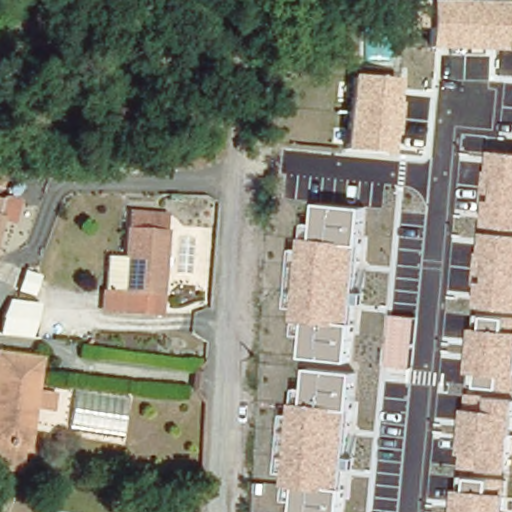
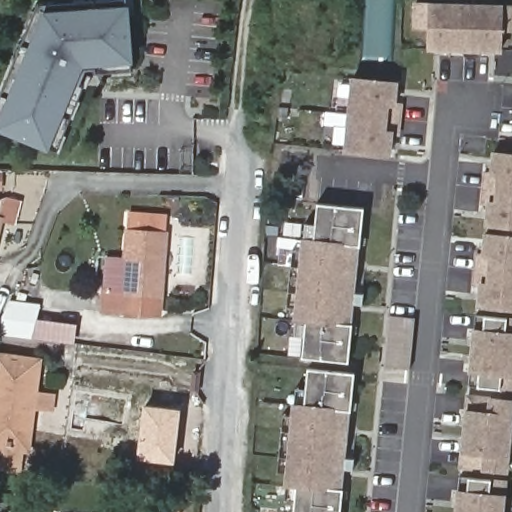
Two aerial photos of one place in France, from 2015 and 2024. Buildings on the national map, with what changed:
new [(77,0),(127,0),(128,4),(132,62),(131,69),(91,73),(58,151),(48,146),(0,125),(0,98),(40,3),(77,0)]
unchanged [(428,1),(504,4),(512,4),(512,31),(505,31),(503,52),(428,50),(430,31),(414,30),(415,1),(428,1)]
unchanged [(400,81),(397,102),(403,103),(400,136),(394,135),(393,157),(345,153),(352,76),(400,81)]
unchanged [(485,226),(488,205),(479,204),(482,170),(490,172),(493,151),(512,152),(512,228),(485,226)]
unchanged [(365,207),(350,363),(303,359),(305,337),(295,336),(298,322),(293,321),(295,310),(288,309),(293,249),(301,250),(302,238),(306,238),(307,223),(316,224),(318,202),(365,207)]
unchanged [(157,315),(104,311),(106,289),(108,257),(120,258),(123,211),(165,214),(157,315)]
unchanged [(477,308),(479,287),(472,286),(475,252),(484,254),(485,232),(512,234),(512,311),(477,308)]
unchanged [(0,332),(0,328),(8,300),(41,304),(30,337),(0,332)]
unchanged [(512,317),(512,391),(468,387),(475,314),(512,317)]
unchanged [(411,370),(385,368),(391,315),(416,317),(411,370)]
unchanged [(0,356),(36,360),(25,448),(22,468),(0,464),(0,356)]
unchanged [(295,502),(286,501),(288,486),(284,486),(285,474),(278,473),(284,414),(290,414),(291,403),(296,403),(298,389),(307,390),(308,368),(356,372),(342,512),(295,512),(295,502)]
unchanged [(512,398),(512,448),(509,474),(459,469),(460,452),(462,452),(466,410),(464,410),(465,393),(512,398)]
new [(138,456),(144,405),(180,412),(174,463),(138,456)]
unchanged [(508,480),(505,512),(455,512),(458,476),(508,480)]

